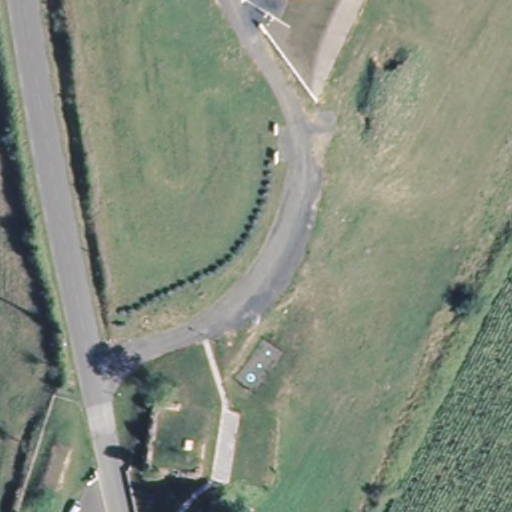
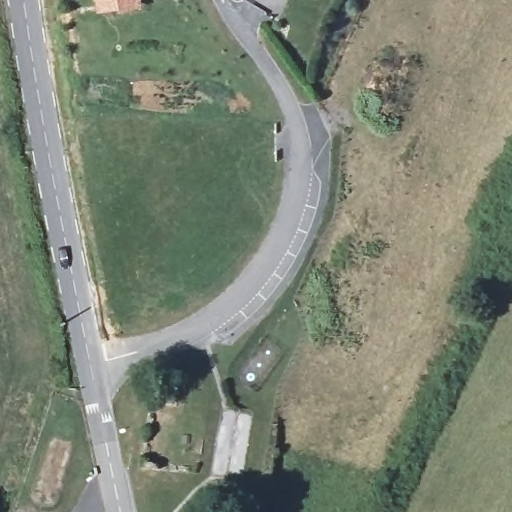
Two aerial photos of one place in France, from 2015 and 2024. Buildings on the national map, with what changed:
new [(98,15),(96,0),(141,0),(142,9),(98,15)]

